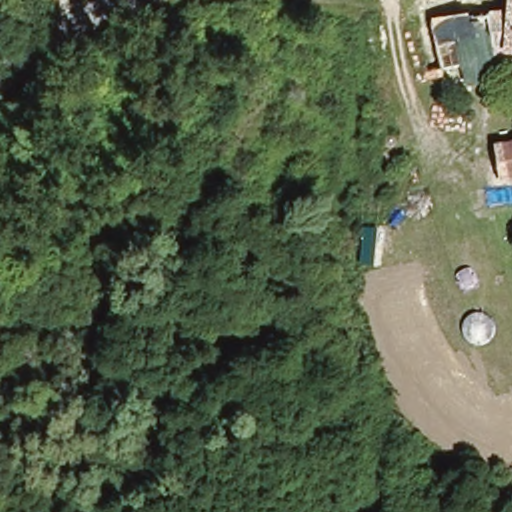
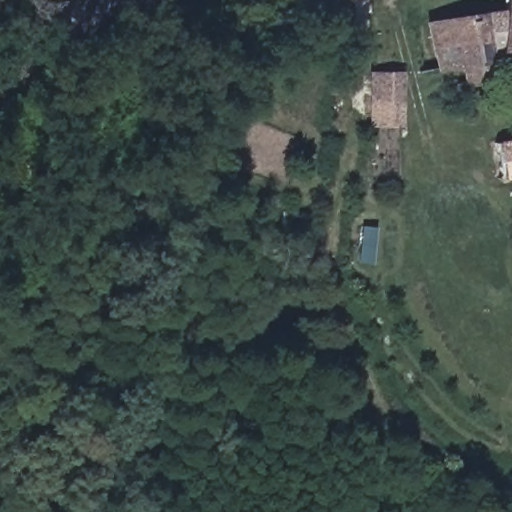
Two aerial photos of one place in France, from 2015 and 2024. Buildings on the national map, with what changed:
unchanged [(436,19),(510,21),(512,15),(512,57),(434,55),(436,19)]
new [(405,73),(406,127),(372,127),(374,73),(405,73)]
unchanged [(512,164),(495,164),(494,139),(512,139),(512,164)]

